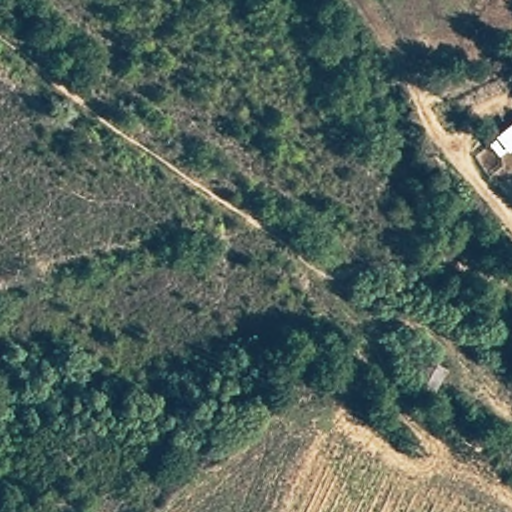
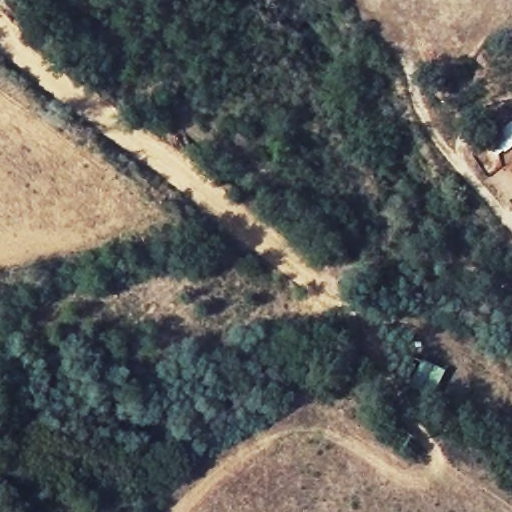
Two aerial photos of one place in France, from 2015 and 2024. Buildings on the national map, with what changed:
unchanged [(432,397),(410,388),(420,362),(444,372),(432,397)]

